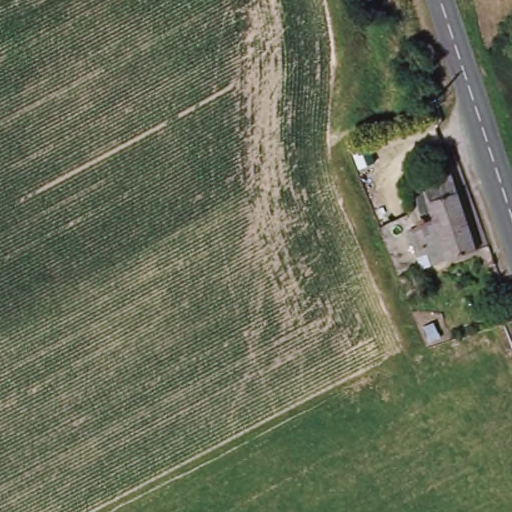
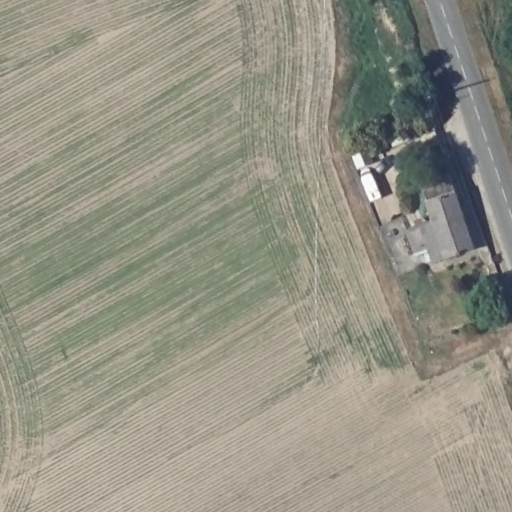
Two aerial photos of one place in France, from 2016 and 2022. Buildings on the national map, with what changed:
unchanged [(435,220),(422,186),(450,174),(477,247),(428,265),(415,229),(435,220)]
unchanged [(411,182),(415,192),(405,195),(401,185),(411,182)]

